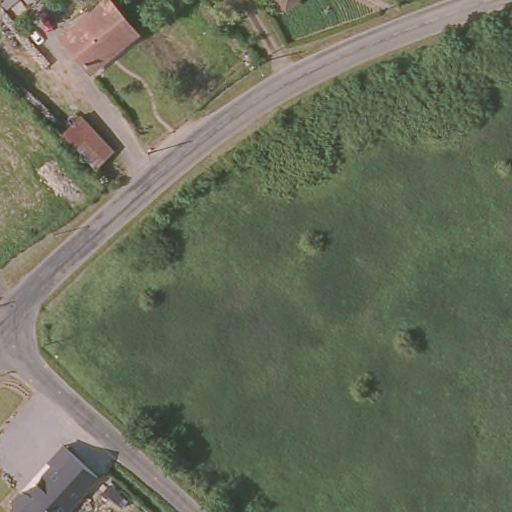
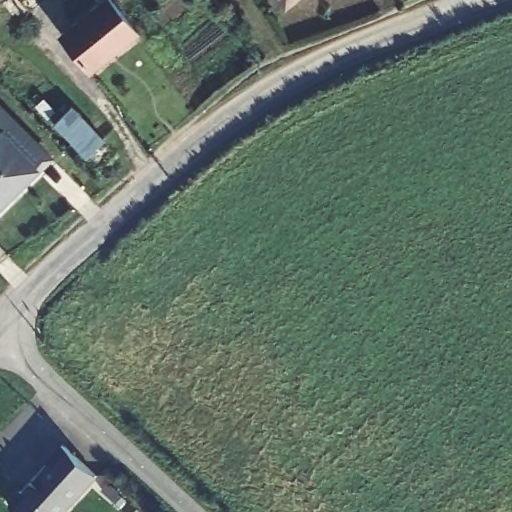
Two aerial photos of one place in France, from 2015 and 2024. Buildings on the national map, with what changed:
unchanged [(58,37),(99,0),(106,0),(133,33),(90,71),(58,37)]
unchanged [(277,12),(268,0),(292,0),(277,12)]
new [(0,210),(0,103),(54,158),(0,210)]
unchanged [(80,117),(115,152),(95,171),(61,134),(80,117)]
unchanged [(100,476),(65,512),(22,512),(13,503),(65,444),(100,476)]

